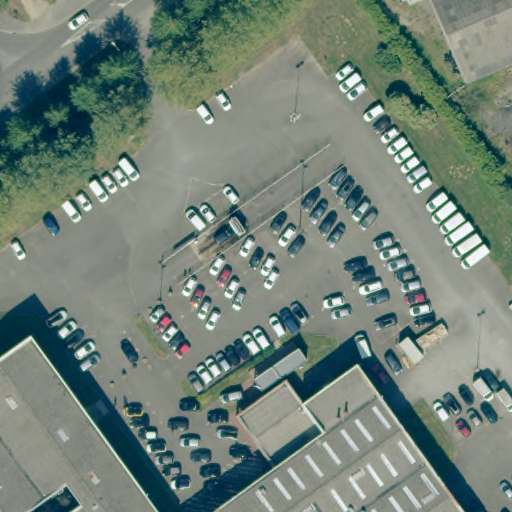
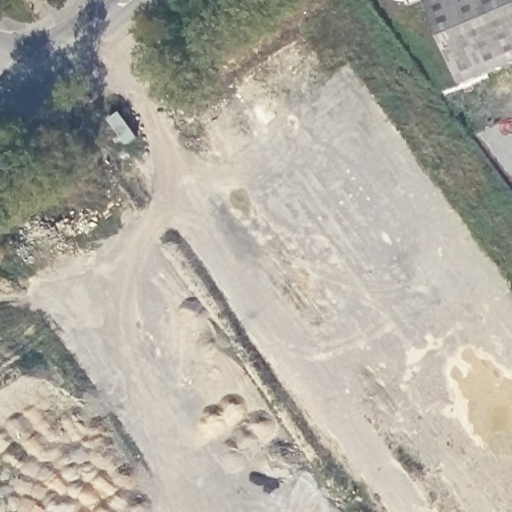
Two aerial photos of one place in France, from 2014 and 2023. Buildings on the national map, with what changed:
unchanged [(421,0),(512,0),(512,63),(461,86),(421,0)]
demolished [(0,357),(31,335),(161,512),(0,512),(0,357)]
demolished [(273,464),(237,415),(285,379),(300,400),(353,362),(356,365),(426,459),(465,512),(206,512),(273,464)]

